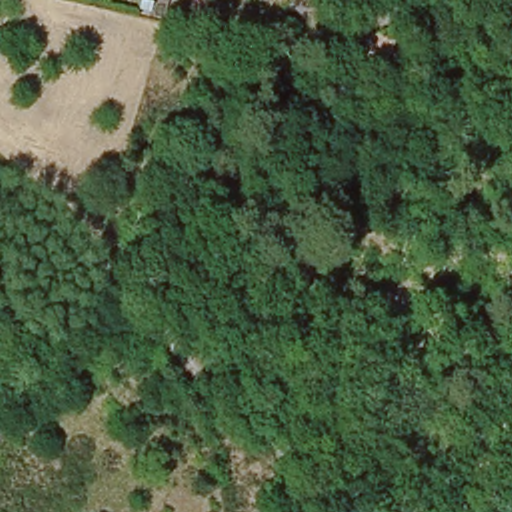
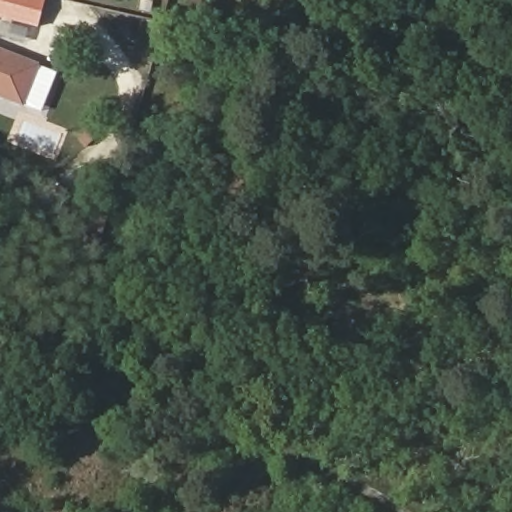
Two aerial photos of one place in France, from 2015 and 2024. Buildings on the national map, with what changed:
new [(38,27),(0,17),(0,0),(45,0),(38,27)]
unchanged [(191,0),(201,0),(204,0),(220,4),(217,11),(212,33),(187,27),(191,0)]
new [(25,107),(0,97),(0,48),(41,65),(25,107)]

